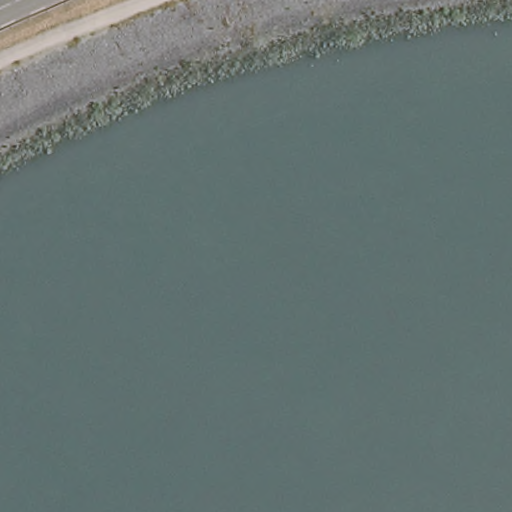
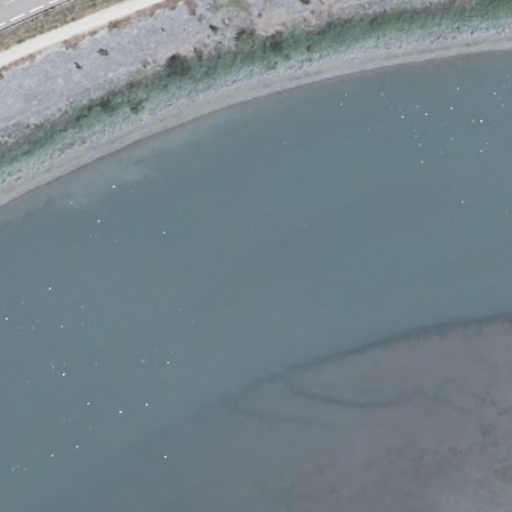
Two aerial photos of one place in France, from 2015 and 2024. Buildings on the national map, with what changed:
[]

